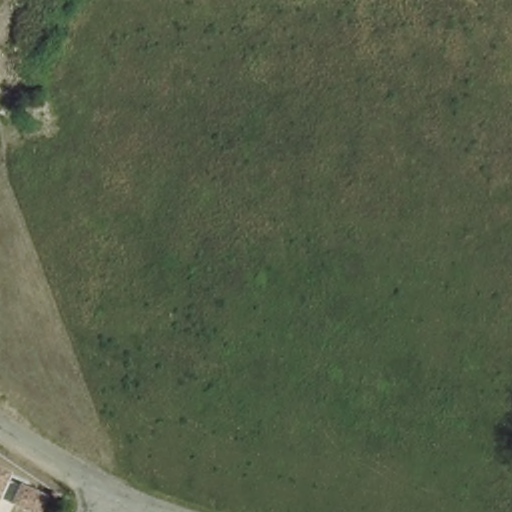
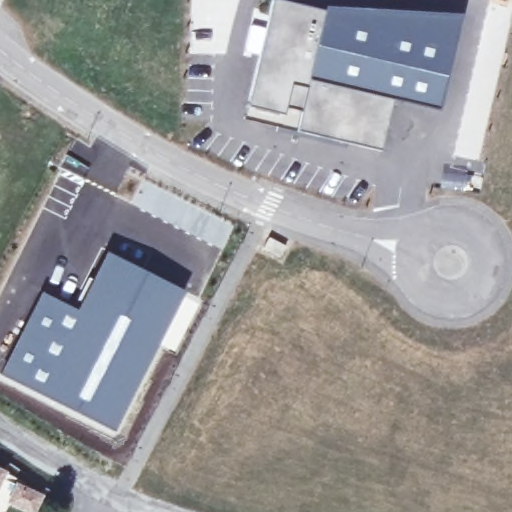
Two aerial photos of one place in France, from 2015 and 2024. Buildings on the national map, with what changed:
new [(322,11),(460,15),(438,112),(390,101),(378,154),(244,120),(269,1),(322,11)]
new [(75,306),(103,249),(187,291),(170,327),(160,344),(134,398),(115,433),(0,373),(0,372),(41,290),(75,306)]
new [(0,483),(0,471),(5,473),(0,483)]
new [(40,496),(33,512),(30,512),(10,502),(18,485),(40,496)]

